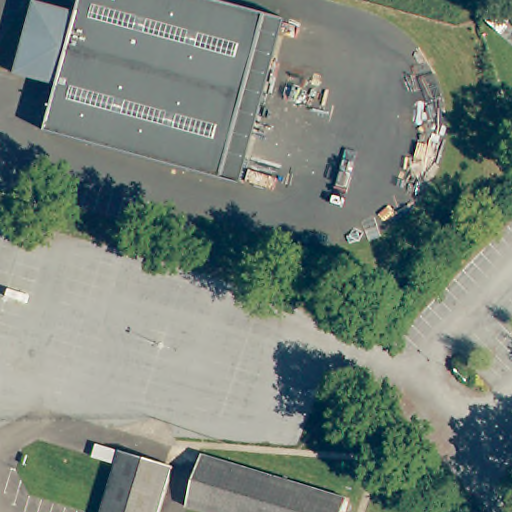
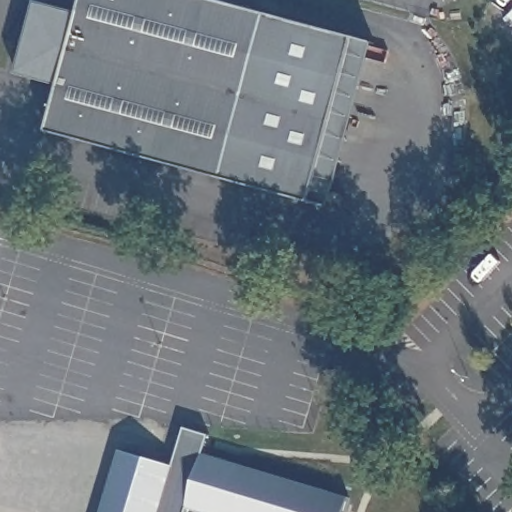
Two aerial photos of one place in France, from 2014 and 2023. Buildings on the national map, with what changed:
unchanged [(83,0),(218,0),(267,13),(223,179),(47,131),(59,87),(17,74),(37,1),(79,11),(83,0)]
unchanged [(508,15),(512,12),(512,19),(508,15)]
new [(267,13),(374,43),(330,206),(223,179),(267,13)]
unchanged [(174,466),(161,512),(103,512),(121,450),(174,466)]
unchanged [(349,498),(346,509),(346,512),(204,512),(188,507),(204,454),(349,498)]

